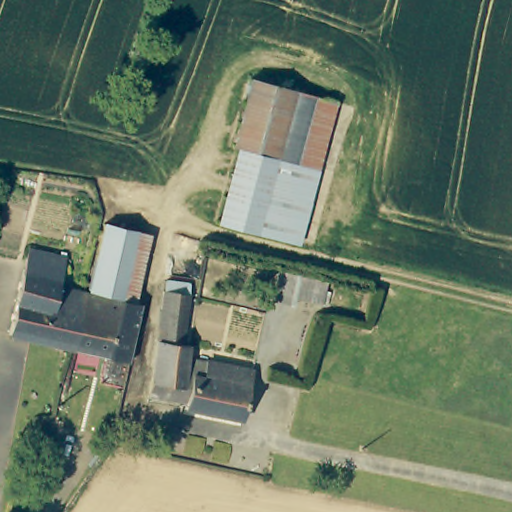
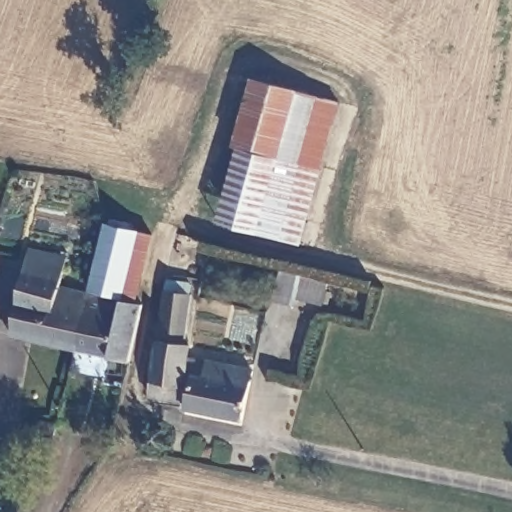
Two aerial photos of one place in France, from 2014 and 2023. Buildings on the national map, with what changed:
unchanged [(348,97),(309,238),(228,216),(246,145),(243,140),(262,74),(348,97)]
unchanged [(110,224),(142,231),(126,297),(94,289),(110,224)]
unchanged [(34,249),(71,257),(65,285),(59,309),(23,300),(34,249)]
unchanged [(299,276),(328,281),(322,305),(294,299),(294,305),(273,300),(279,270),(299,276)]
unchanged [(194,345),(193,357),(259,370),(247,420),(190,408),(192,402),(154,395),(169,290),(170,281),(195,285),(195,294),(189,344),(194,345)]
unchanged [(15,335),(23,300),(59,309),(65,285),(91,291),(80,350),(15,335)]
unchanged [(80,350),(91,291),(100,293),(126,300),(114,357),(80,350)]
unchanged [(126,300),(147,304),(134,361),(114,357),(126,300)]
unchanged [(52,437),(45,462),(27,457),(29,447),(33,432),(52,437)]

